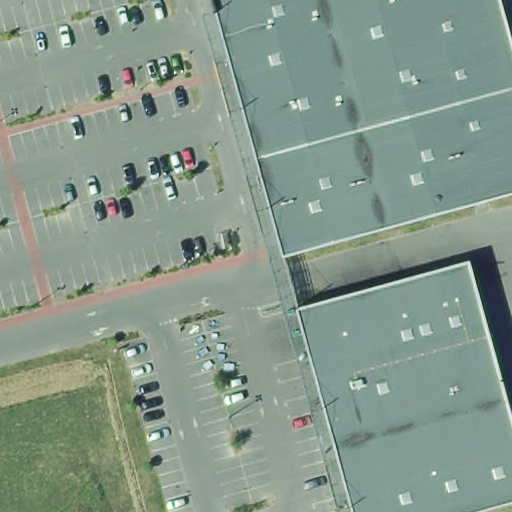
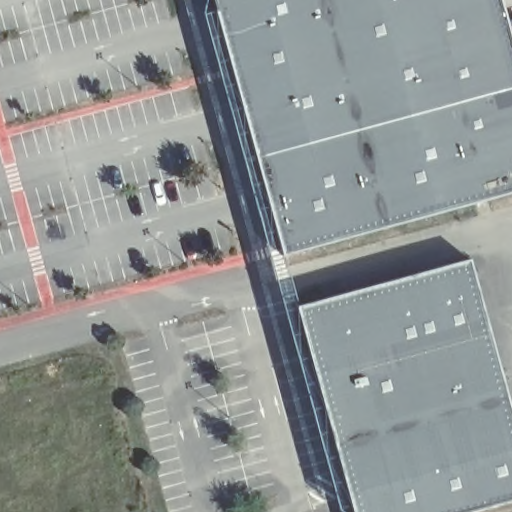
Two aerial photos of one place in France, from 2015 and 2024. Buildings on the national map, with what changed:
unchanged [(287,255),(217,0),(505,0),(512,26),(512,197),(287,255)]
unchanged [(359,512),(299,306),(478,258),(512,386),(512,504),(482,512),(359,512)]

